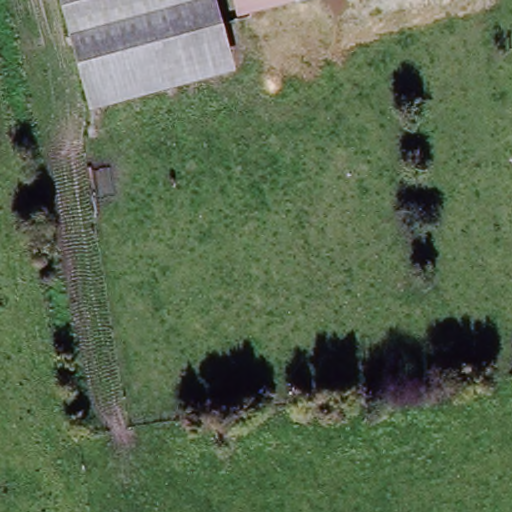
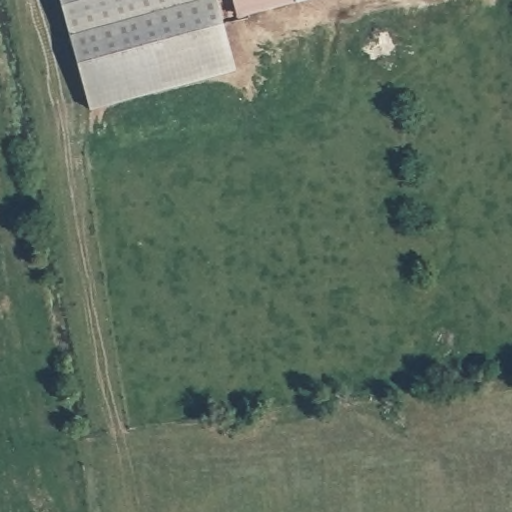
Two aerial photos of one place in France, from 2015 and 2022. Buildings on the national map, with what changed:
unchanged [(87,111),(57,0),(215,0),(234,73),(87,111)]
unchanged [(233,0),(289,0),(236,16),(233,0)]

